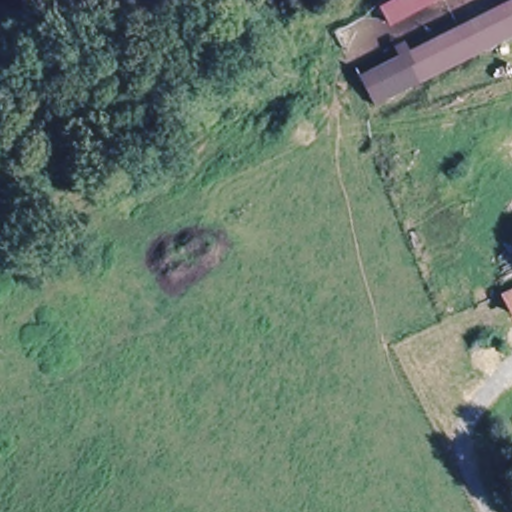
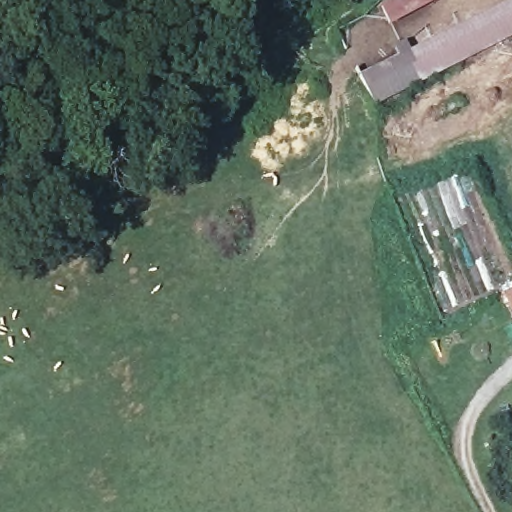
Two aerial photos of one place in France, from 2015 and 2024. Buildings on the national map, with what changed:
unchanged [(394,0),(437,0),(389,24),(380,7),(394,0)]
unchanged [(509,0),(512,0),(512,20),(471,41),(461,21),(509,0)]
unchanged [(512,20),(512,36),(419,83),(402,52),(461,21),(471,41),(512,20)]
unchanged [(419,83),(373,106),(358,73),(402,52),(419,83)]
unchanged [(512,289),(512,311),(503,293),(512,289)]

